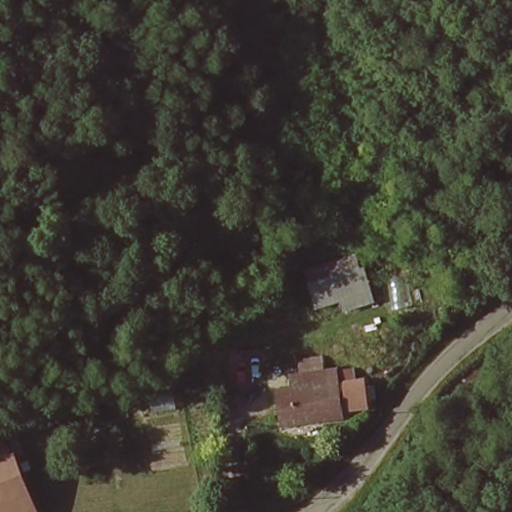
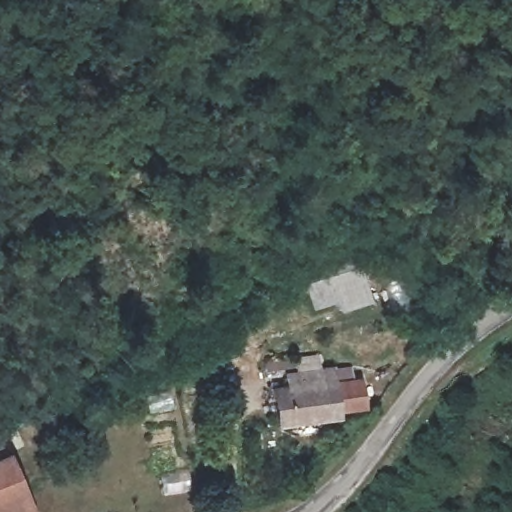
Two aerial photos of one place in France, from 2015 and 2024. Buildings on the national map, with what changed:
unchanged [(314,295),(308,278),(360,262),(375,308),(347,319),(344,308),(321,316),(314,295)]
unchanged [(287,436),(277,400),(291,396),(290,384),(301,380),(298,366),(319,361),(323,373),(333,371),(345,422),(287,436)]
unchanged [(10,460),(25,498),(0,507),(0,463),(10,460)]
unchanged [(0,512),(0,507),(25,498),(31,512),(0,512)]

